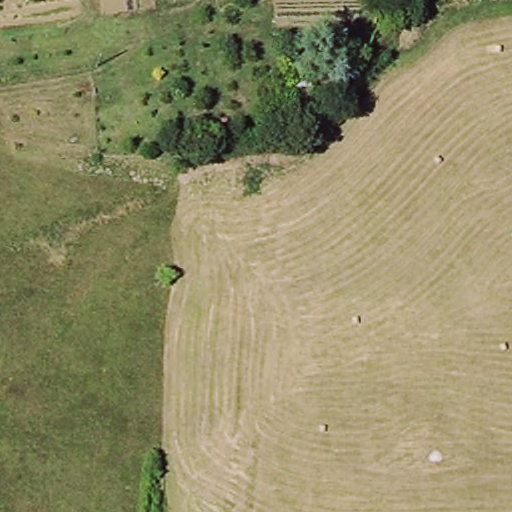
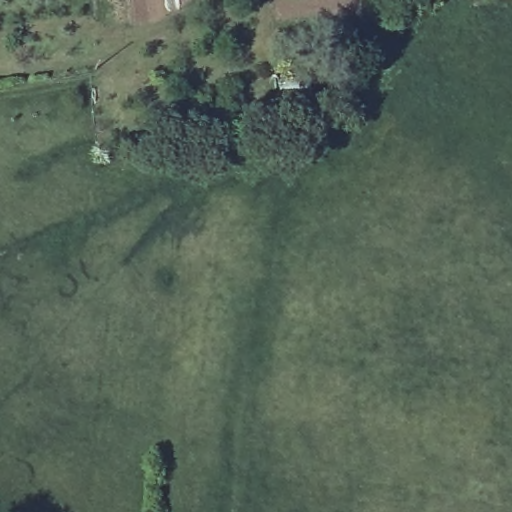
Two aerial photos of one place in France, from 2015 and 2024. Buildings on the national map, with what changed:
[]

